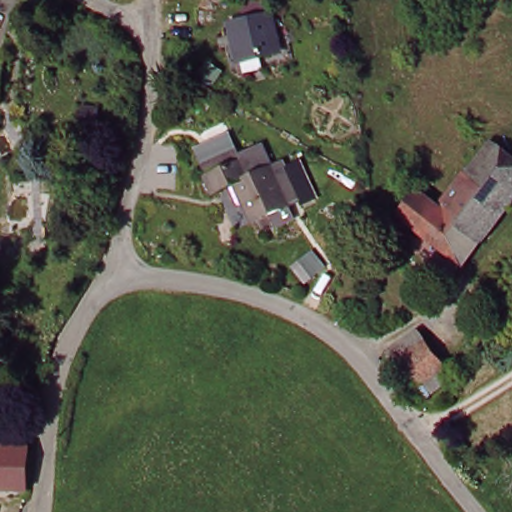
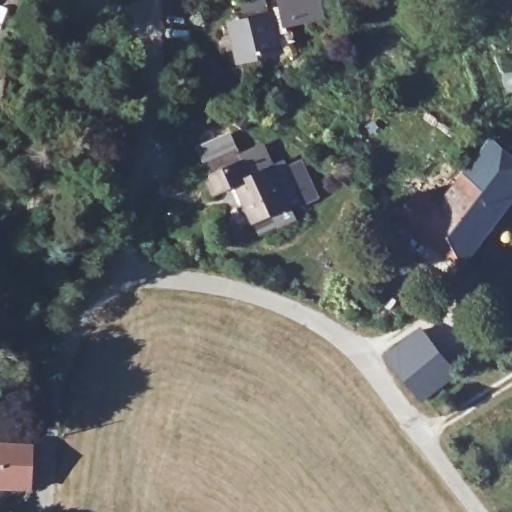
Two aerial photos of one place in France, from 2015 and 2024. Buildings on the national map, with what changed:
new [(321,0),(325,17),(288,26),(282,0),(321,0)]
unchanged [(7,78),(5,100),(0,99),(0,59),(9,60),(7,78)]
unchanged [(245,164),(251,179),(272,171),(288,209),(250,225),(235,185),(210,195),(202,165),(199,155),(233,141),(237,154),(241,165),(245,164)]
unchanged [(512,161),(512,199),(461,265),(402,219),(414,202),(420,195),(440,210),(491,145),(512,161)]
unchanged [(452,379),(424,402),(387,356),(415,332),(452,379)]
unchanged [(30,486),(0,486),(0,445),(30,445),(30,464),(30,486)]

